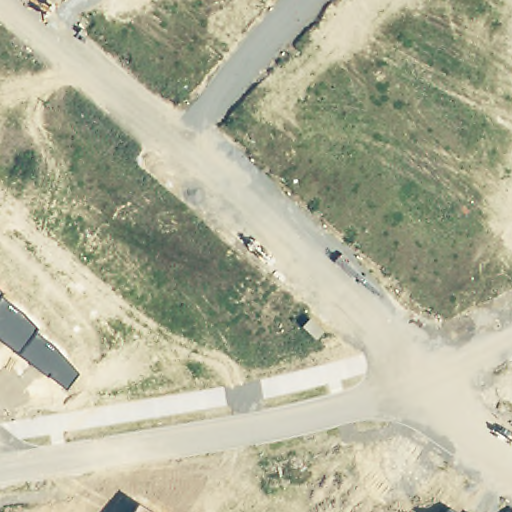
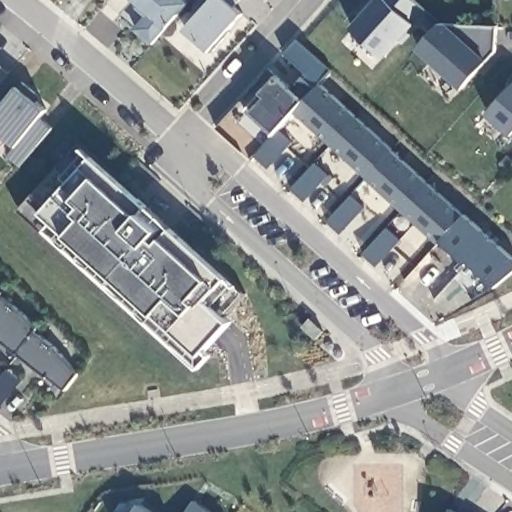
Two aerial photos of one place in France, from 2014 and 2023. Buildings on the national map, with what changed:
new [(168,26),(155,44),(137,27),(152,12),(137,0),(189,0),(191,1),(168,26)]
new [(242,12),(210,50),(186,27),(209,1),(207,0),(237,0),(233,5),(242,12)]
new [(421,26),(405,44),(401,40),(387,55),(352,27),(375,0),(417,0),(429,11),(417,24),(421,26)]
new [(495,50),(462,87),(417,47),(441,21),(497,24),(495,50)]
unchanged [(0,62),(10,70),(0,82),(0,62)]
new [(437,241),(292,111),(262,144),(246,131),(257,119),(245,107),(277,72),(295,86),(302,76),(315,86),(320,80),(462,214),(437,241)]
new [(55,126),(24,165),(10,155),(20,145),(0,130),(0,108),(19,84),(49,109),(42,117),(55,126)]
new [(488,111),(512,86),(512,134),(488,111)]
new [(79,142),(93,155),(243,292),(224,313),(231,321),(207,349),(212,353),(202,366),(19,210),(79,142)]
unchanged [(0,295),(0,289),(2,290),(0,295)]
unchanged [(37,327),(36,330),(55,345),(79,372),(66,388),(49,374),(47,376),(0,339),(0,295),(24,312),(37,327)]
new [(193,499),(212,512),(184,512),(193,499)]
unchanged [(137,503),(150,512),(131,512),(137,503)]
unchanged [(450,508),(455,512),(447,512),(450,508)]

